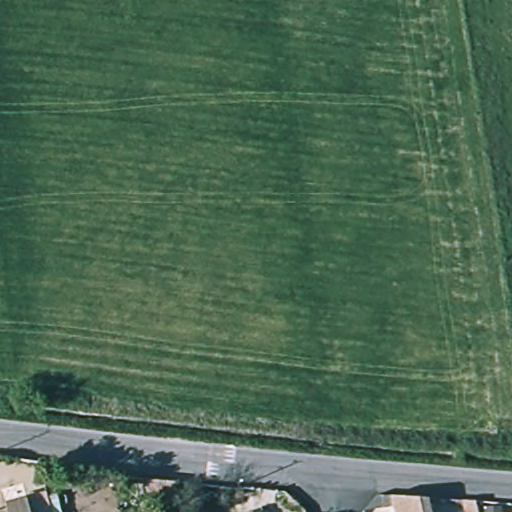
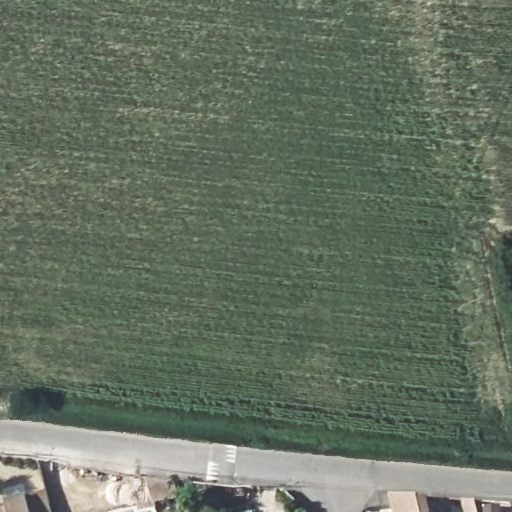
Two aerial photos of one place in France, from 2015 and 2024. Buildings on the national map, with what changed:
unchanged [(177,484),(175,500),(153,505),(147,482),(177,484)]
unchanged [(431,512),(396,512),(394,500),(430,503),(431,512)]
unchanged [(9,512),(8,507),(31,502),(33,512),(9,512)]
unchanged [(480,512),(469,512),(467,504),(478,504),(480,512)]

